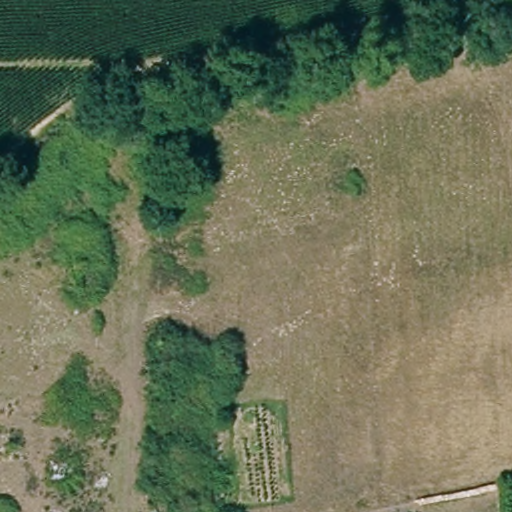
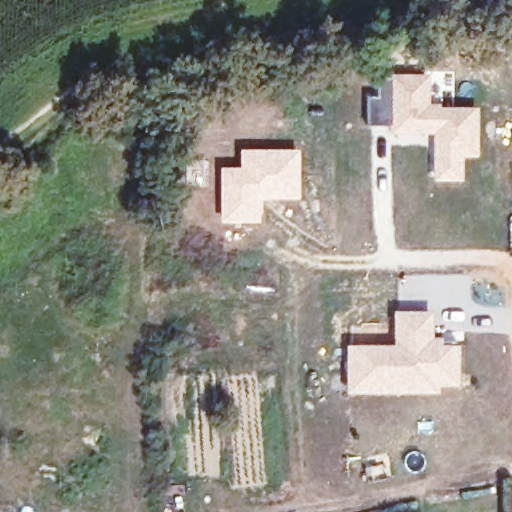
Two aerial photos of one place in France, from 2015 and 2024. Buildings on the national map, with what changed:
new [(378,81),(427,79),(428,109),(439,109),(439,111),(477,110),(478,154),(463,155),(463,179),(440,179),(438,133),(428,133),(395,134),(395,129),(369,129),(368,100),(378,99),(378,81)]
new [(238,165),(239,147),(299,148),(299,199),(261,199),(260,222),(219,222),(219,166),(238,165)]
new [(411,391),(351,391),(352,349),(403,349),(403,343),(400,342),(400,315),(432,316),(432,342),(442,342),(459,342),(459,350),(458,384),(439,384),(438,392),(411,391)]

